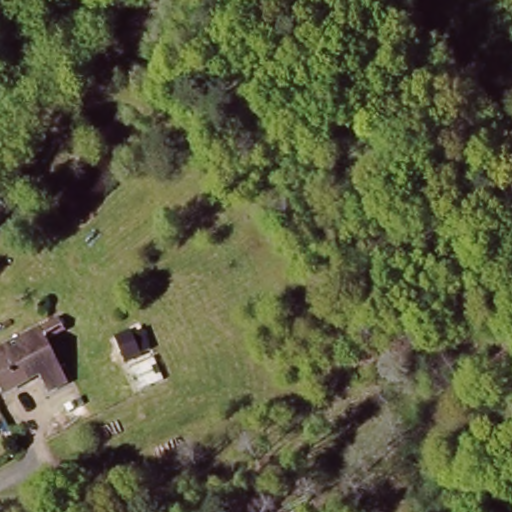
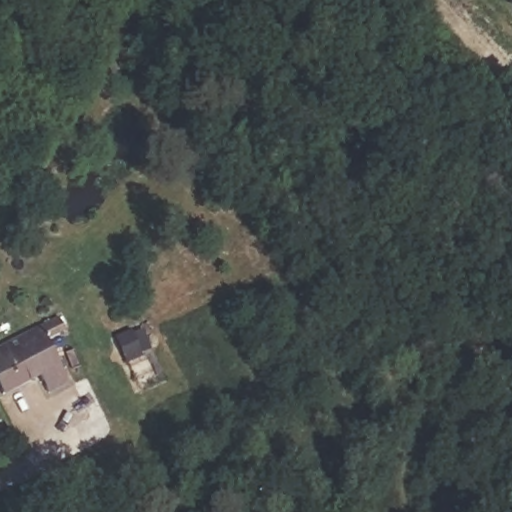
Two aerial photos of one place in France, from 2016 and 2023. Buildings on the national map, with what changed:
unchanged [(0,354),(47,330),(59,323),(64,333),(46,342),(67,383),(44,395),(37,380),(6,399),(0,389),(0,354)]

